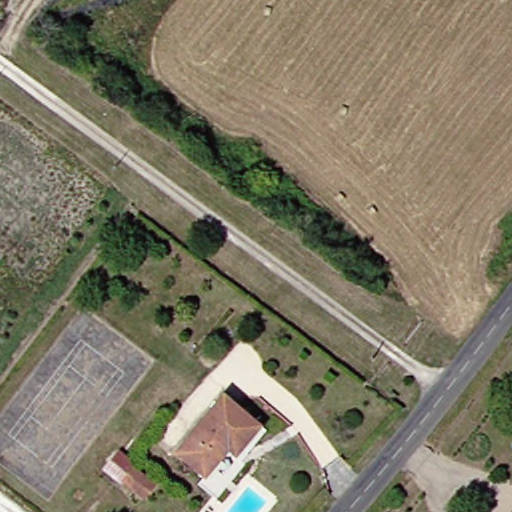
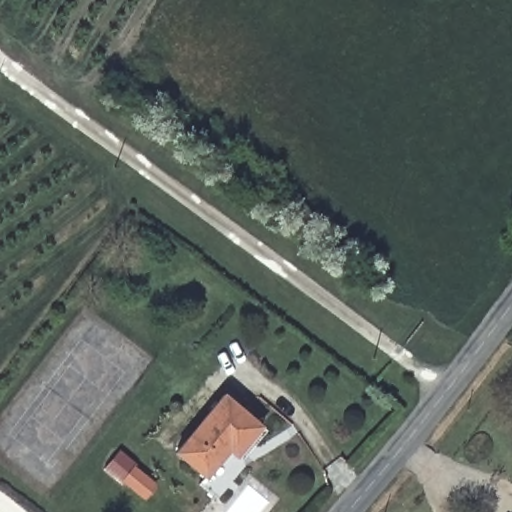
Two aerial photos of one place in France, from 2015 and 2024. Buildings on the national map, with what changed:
unchanged [(206,474),(176,454),(224,389),(269,422),(251,446),(258,452),(220,498),(200,483),(206,474)]
unchanged [(149,489),(137,503),(113,485),(125,470),(149,489)]

